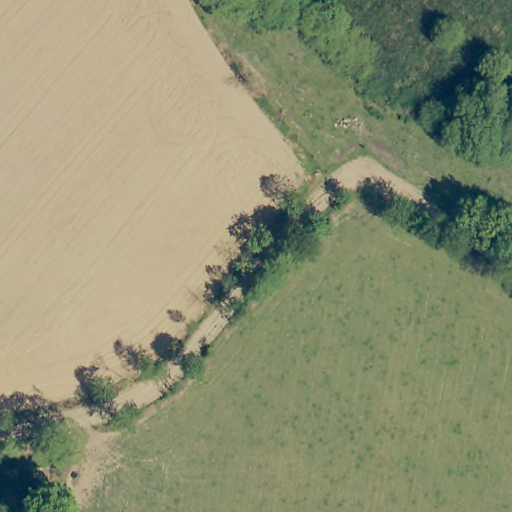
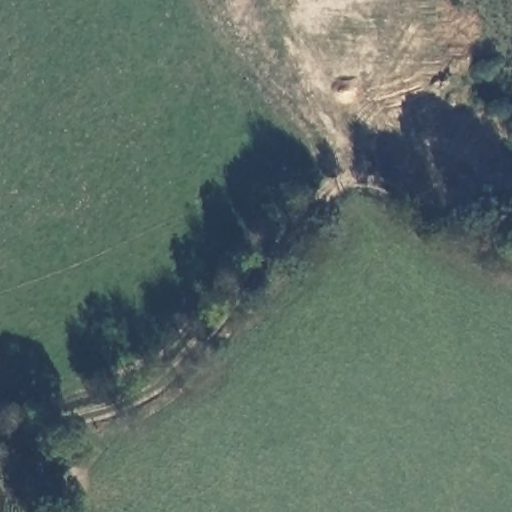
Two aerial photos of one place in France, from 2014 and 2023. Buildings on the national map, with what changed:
[]

